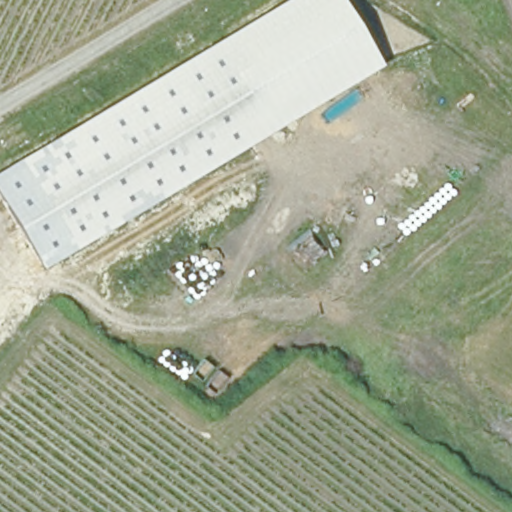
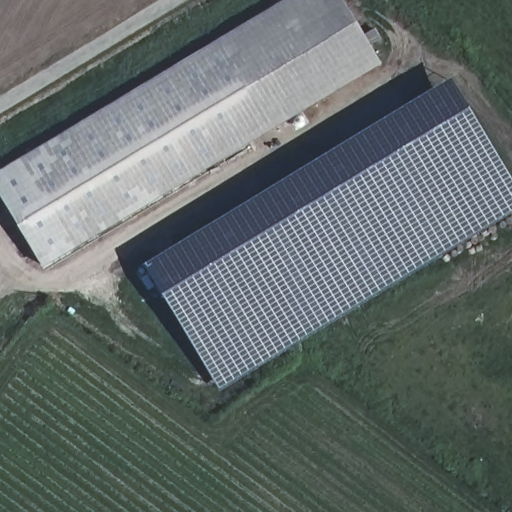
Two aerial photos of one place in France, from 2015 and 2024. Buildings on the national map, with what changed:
unchanged [(0,197),(0,170),(285,0),(343,0),(383,64),(43,268),(0,197)]
new [(457,80),(512,176),(512,217),(222,392),(150,269),(457,80)]

